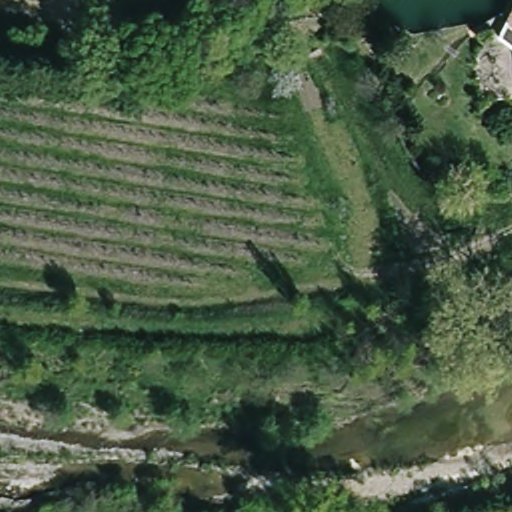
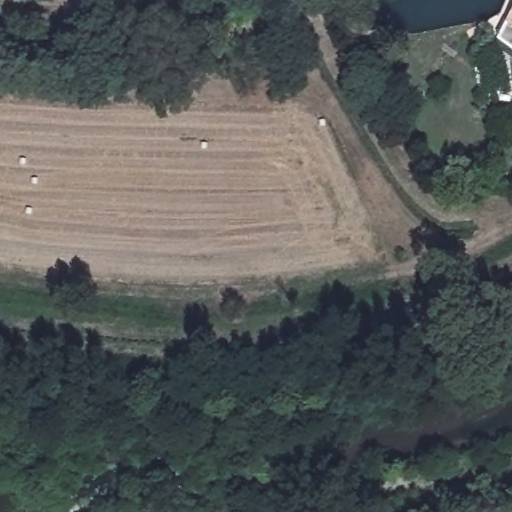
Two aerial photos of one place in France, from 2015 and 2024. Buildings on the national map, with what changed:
unchanged [(512,8),(512,52),(496,40),(512,8)]

